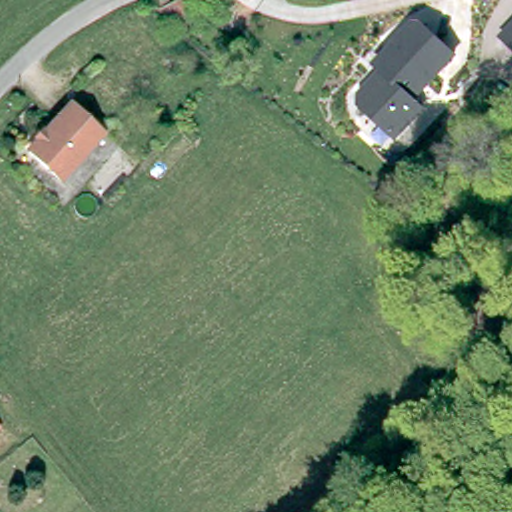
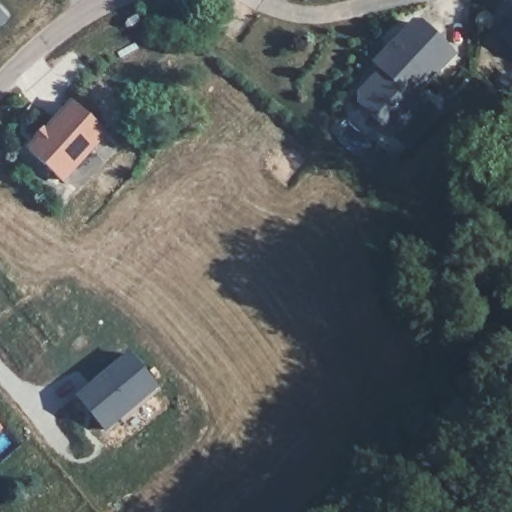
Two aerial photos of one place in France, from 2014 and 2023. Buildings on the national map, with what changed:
unchanged [(155,1),(157,0),(185,0),(196,17),(174,30),(155,1)]
unchanged [(512,8),(512,48),(492,29),(512,8)]
new [(4,15),(0,18),(0,11),(4,15)]
unchanged [(411,17),(444,47),(403,92),(413,101),(387,130),(353,100),(352,89),(361,79),(371,78),(377,71),(370,64),(364,60),(382,39),(403,17),(411,17)]
unchanged [(73,94),(106,124),(62,173),(29,143),(73,94)]
new [(105,427),(78,395),(128,352),(155,384),(105,427)]

